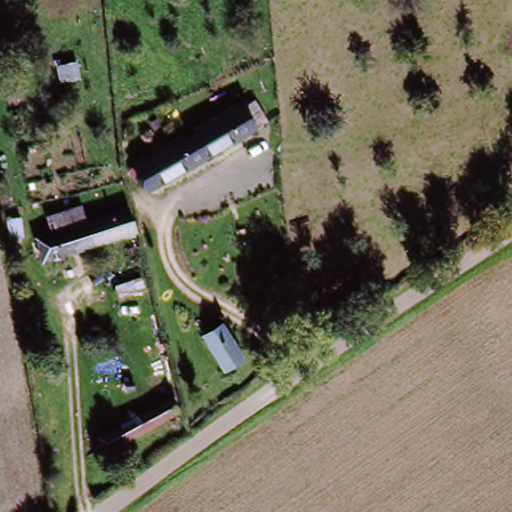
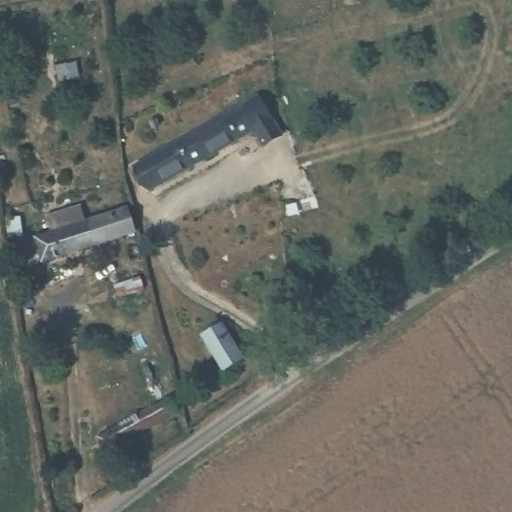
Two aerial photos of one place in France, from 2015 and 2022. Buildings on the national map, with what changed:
unchanged [(152,192),(143,177),(135,181),(129,168),(255,102),(269,126),(152,192)]
unchanged [(43,216),(78,205),(83,220),(126,206),(134,236),(40,266),(30,237),(48,231),(43,216)]
unchanged [(18,234),(11,216),(25,211),(28,220),(27,221),(30,230),(18,234)]
unchanged [(226,375),(214,356),(203,337),(223,325),(234,344),(246,363),(226,375)]
unchanged [(89,433),(141,405),(164,392),(172,407),(149,419),(98,448),(89,433)]

